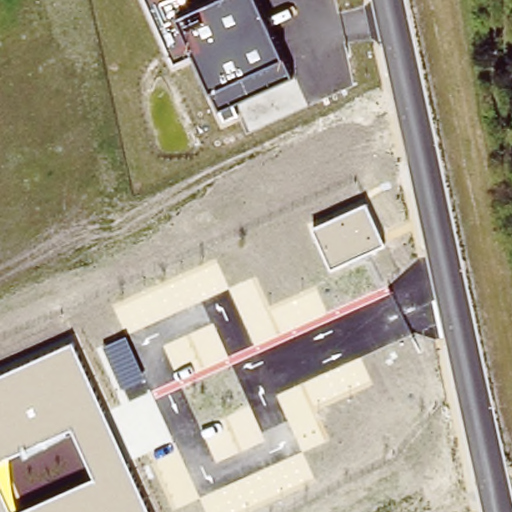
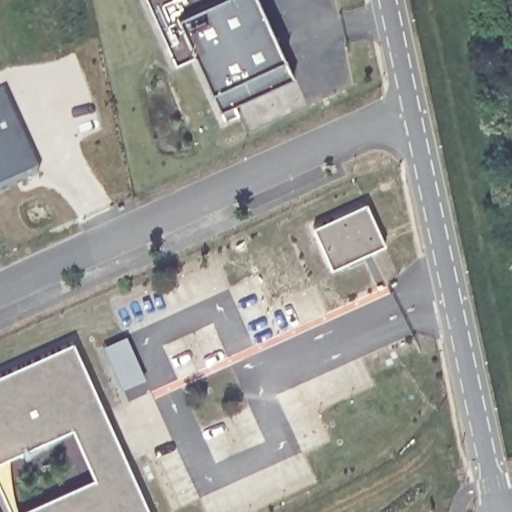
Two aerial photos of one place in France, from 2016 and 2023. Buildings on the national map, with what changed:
unchanged [(235,102),(239,114),(225,120),(195,53),(175,62),(147,0),(257,0),(293,76),(235,102)]
new [(0,96),(1,95),(37,175),(0,191),(0,96)]
unchanged [(366,202),(385,244),(332,267),(314,226),(366,202)]
unchanged [(126,336),(145,378),(122,388),(104,346),(126,336)]
unchanged [(95,478),(72,428),(0,461),(0,375),(72,342),(150,512),(21,512),(95,478)]
unchanged [(0,487),(12,512),(0,512),(0,487)]

